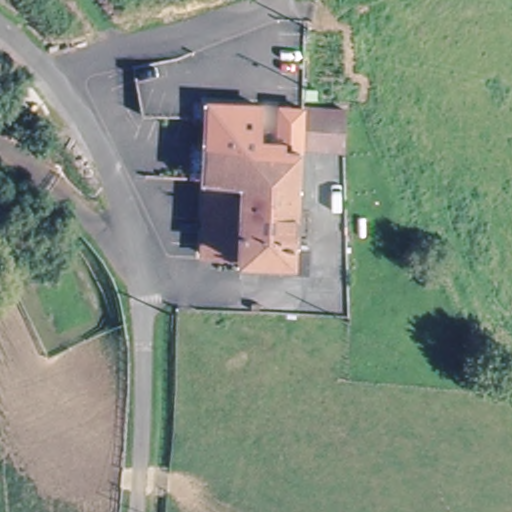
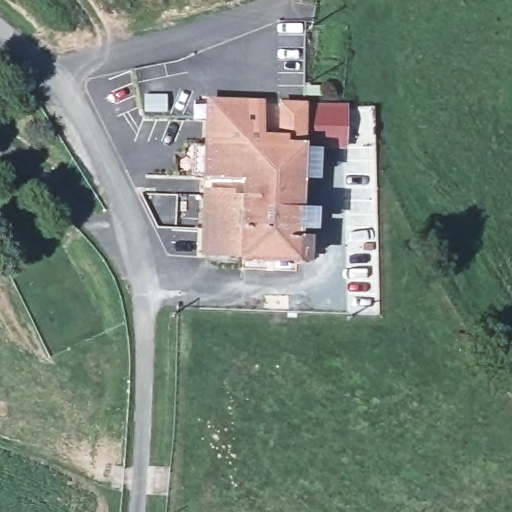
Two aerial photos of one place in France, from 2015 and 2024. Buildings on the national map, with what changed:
unchanged [(232,194),(232,200),(245,200),(245,182),(205,182),(209,105),(260,106),(259,148),(268,148),(283,150),(282,133),(280,133),(281,108),(303,108),(342,110),(343,151),(301,150),(298,210),(244,208),(241,258),(202,255),(205,195),(232,194)]
unchanged [(244,208),(298,210),(298,238),(307,239),(308,263),(241,260),(241,258),(244,208)]

